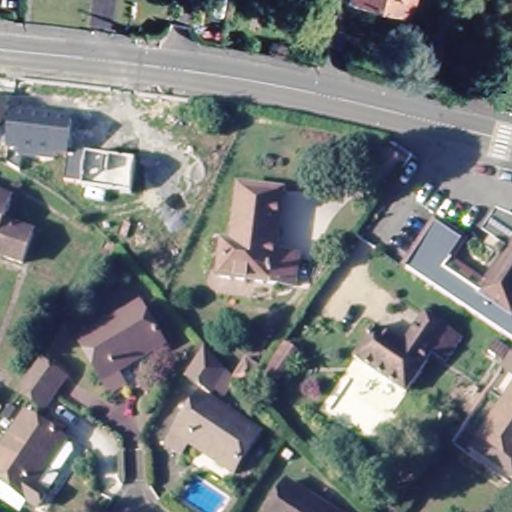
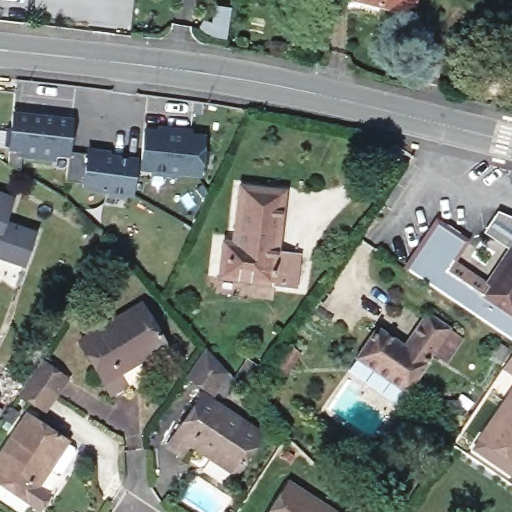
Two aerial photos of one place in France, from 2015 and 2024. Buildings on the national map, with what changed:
unchanged [(415,0),(410,17),(352,2),(353,0),(415,0)]
unchanged [(4,154),(3,154),(6,120),(66,126),(63,157),(130,165),(126,199),(76,193),(77,189),(59,186),(62,160),(49,159),(49,165),(15,161),(14,177),(2,170),(4,154)]
new [(139,136),(199,144),(195,180),(135,173),(139,136)]
unchanged [(6,225),(0,246),(0,187),(16,192),(6,225)]
unchanged [(210,276),(215,241),(231,244),(240,190),(285,197),(275,253),(296,256),(290,290),(210,276)]
unchanged [(437,220),(473,244),(458,265),(484,283),(510,247),(490,233),(503,214),(512,217),(512,339),(511,340),(404,267),(437,220)]
unchanged [(6,225),(37,233),(37,234),(25,271),(0,264),(0,246),(6,225)]
unchanged [(134,360),(119,369),(125,380),(106,391),(74,334),(136,298),(158,335),(163,343),(134,360)]
unchanged [(350,360),(374,327),(400,346),(423,315),(446,331),(423,364),(426,366),(403,398),(350,360)]
unchanged [(512,347),(512,367),(499,358),(508,344),(512,347)]
unchanged [(202,347),(230,380),(216,397),(185,378),(202,347)]
unchanged [(285,347),(296,355),(276,383),(265,375),(285,347)]
unchanged [(40,362),(69,381),(56,400),(45,416),(16,396),(27,380),(40,362)]
unchanged [(232,382),(245,370),(255,380),(241,392),(232,382)]
unchanged [(472,432),(512,376),(512,475),(465,442),(472,432)]
unchanged [(198,455),(203,450),(192,440),(182,450),(167,435),(209,395),(260,448),(235,473),(225,483),(198,455)]
unchanged [(56,437),(65,442),(46,470),(42,467),(30,485),(40,490),(30,505),(0,485),(0,439),(19,411),(56,437)]
unchanged [(286,482),(333,512),(267,512),(286,482)]

